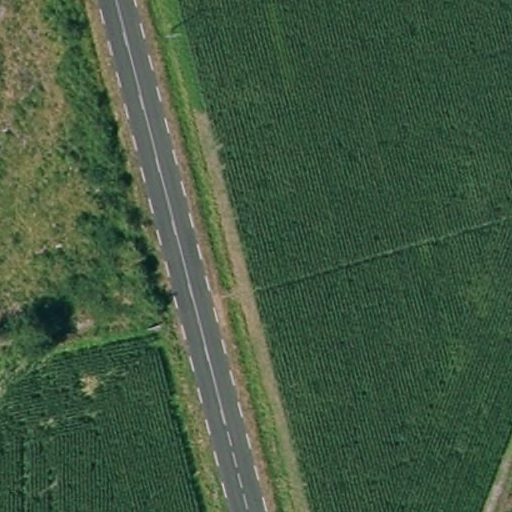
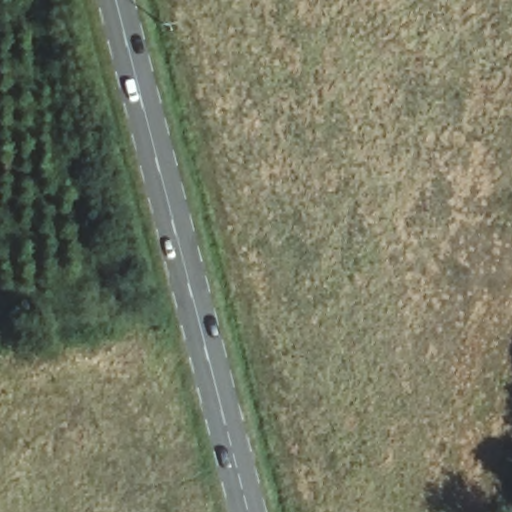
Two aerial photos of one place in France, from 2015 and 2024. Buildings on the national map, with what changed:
[]

